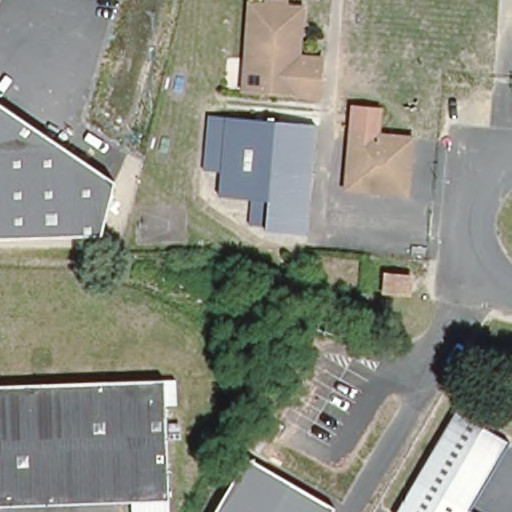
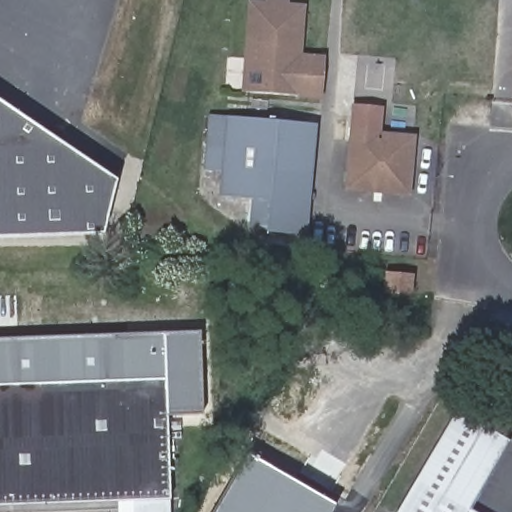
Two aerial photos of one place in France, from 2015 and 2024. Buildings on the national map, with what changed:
unchanged [(316,97),(240,91),(246,4),(261,5),(262,0),(275,0),(288,1),(288,8),(303,9),(300,60),(318,61),(318,74),(316,97)]
unchanged [(101,232),(0,235),(0,101),(113,179),(101,232)]
unchanged [(413,136),(410,194),(347,189),(354,108),(380,109),(379,135),(413,136)]
unchanged [(270,184),(269,200),(215,196),(222,116),(312,122),(307,187),(270,184)]
unchanged [(303,234),(266,231),(269,200),(270,184),(307,187),(303,234)]
unchanged [(406,275),(405,291),(381,289),(382,274),(406,275)]
new [(162,403),(161,380),(0,387),(0,338),(198,331),(202,415),(162,415),(162,403)]
unchanged [(0,507),(0,387),(161,380),(175,379),(176,402),(162,403),(166,499),(0,507)]
unchanged [(462,509),(468,512),(388,512),(442,408),(498,438),(462,509)]
unchanged [(337,512),(215,512),(248,457),(340,508),(337,512)]
new [(116,501),(166,499),(168,512),(117,512),(116,501)]

